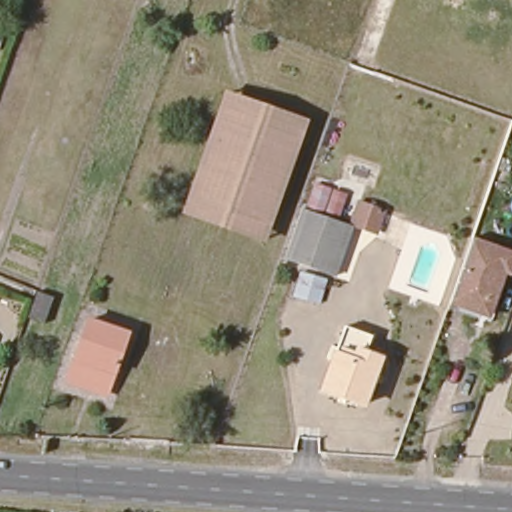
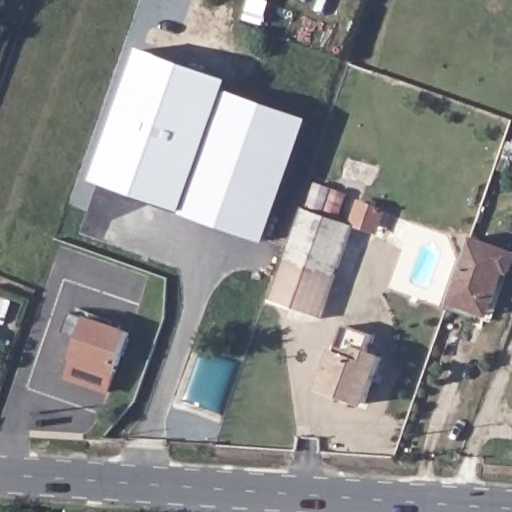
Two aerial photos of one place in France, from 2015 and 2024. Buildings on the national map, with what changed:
new [(226,91),(185,211),(184,212),(95,181),(141,49),(233,81),(229,92),(226,91)]
unchanged [(262,239),(185,211),(226,91),(303,119),(262,239)]
unchanged [(360,206),(383,214),(377,236),(353,229),(360,206)]
unchanged [(292,240),(302,212),(352,230),(342,258),(292,240)]
unchanged [(336,277),(287,260),(286,259),(292,240),(342,258),(336,277)]
unchanged [(471,241),(512,254),(512,265),(509,273),(503,272),(487,314),(450,302),(471,241)]
new [(287,260),(336,277),(337,277),(322,319),(270,300),(286,259),(287,260)]
demolished [(300,270),(346,283),(337,310),(291,295),(300,270)]
unchanged [(55,290),(47,314),(31,310),(39,285),(55,290)]
unchanged [(110,391),(69,377),(88,322),(130,336),(110,391)]
unchanged [(363,353),(385,360),(368,407),(318,389),(343,327),(371,336),(363,353)]

